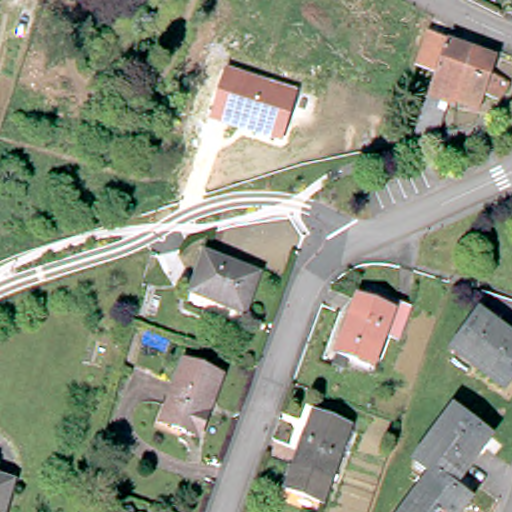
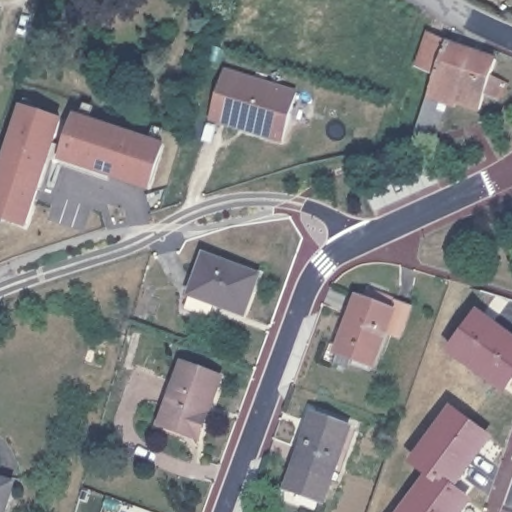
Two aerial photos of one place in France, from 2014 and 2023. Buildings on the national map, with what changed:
unchanged [(488,71),(509,79),(494,101),(480,97),(478,105),(451,99),(450,100),(446,99),(437,129),(412,135),(432,71),(411,64),(420,31),(441,38),(493,55),(488,71)]
unchanged [(297,90),(282,141),(211,121),(225,69),(297,90)]
new [(65,119),(29,229),(0,219),(0,171),(22,105),(65,119)]
new [(168,144),(152,191),(60,160),(76,114),(168,144)]
unchanged [(187,290),(202,251),(256,271),(240,311),(187,290)]
unchanged [(321,370),(325,359),(345,302),(351,303),(356,290),(401,304),(388,342),(373,338),(361,371),(338,363),(333,375),(321,370)]
unchanged [(512,336),(512,367),(501,382),(450,346),(476,310),(512,336)]
unchanged [(220,369),(200,432),(162,420),(183,357),(220,369)]
unchanged [(349,422),(321,498),(278,483),(308,406),(349,422)]
unchanged [(461,512),(410,512),(437,477),(419,463),(457,414),(490,437),(451,488),(469,502),(461,512)]
unchanged [(3,512),(0,512),(0,475),(12,478),(3,512)]

